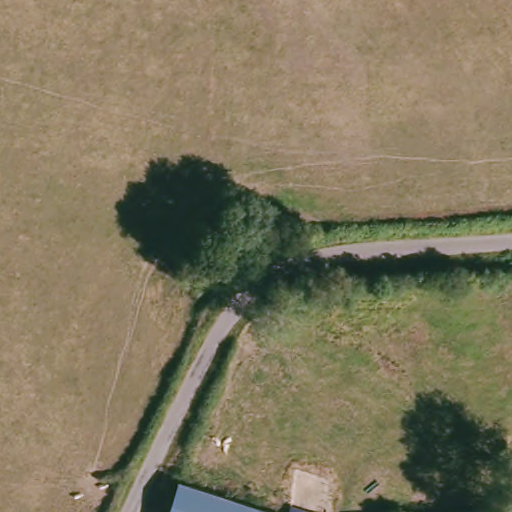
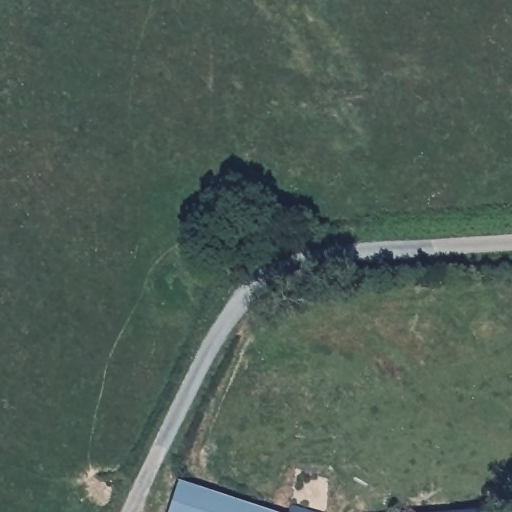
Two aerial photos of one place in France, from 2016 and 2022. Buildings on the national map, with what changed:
unchanged [(278,510),(282,499),(318,512),(166,512),(176,477),(278,510)]
unchanged [(479,511),(479,512),(470,512),(479,511)]

